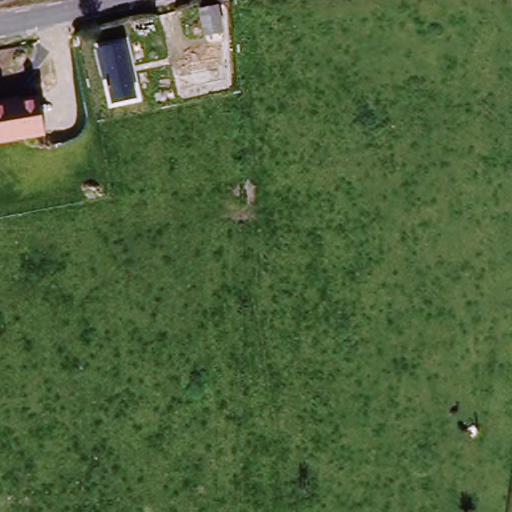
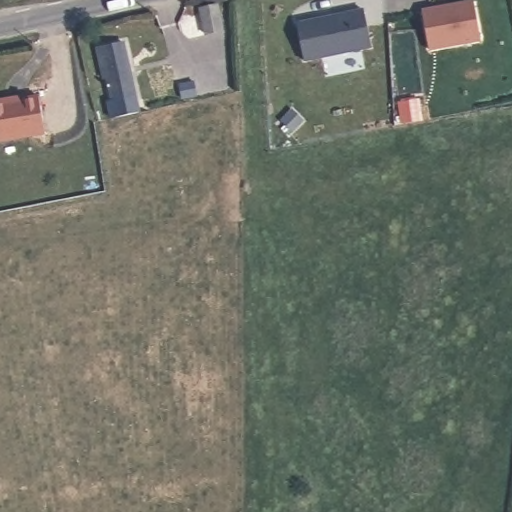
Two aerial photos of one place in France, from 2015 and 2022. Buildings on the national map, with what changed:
new [(429,50),(423,12),(474,5),(480,43),(429,50)]
new [(302,23),(369,10),(376,47),(309,60),(302,23)]
unchanged [(127,48),(140,97),(109,103),(98,53),(127,48)]
unchanged [(37,94),(45,134),(0,144),(0,101),(37,94)]

